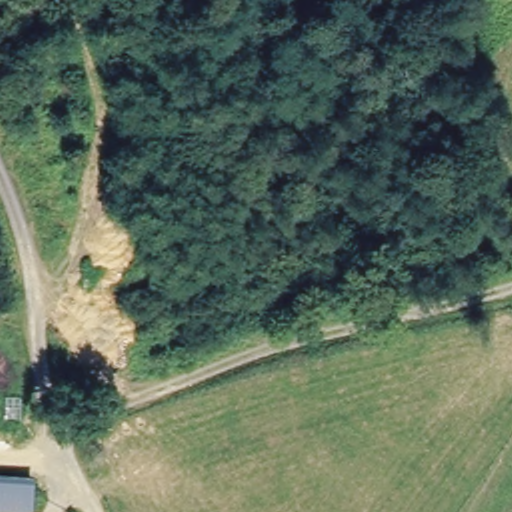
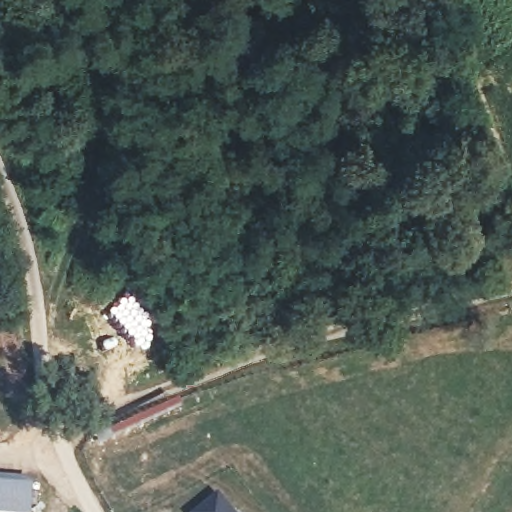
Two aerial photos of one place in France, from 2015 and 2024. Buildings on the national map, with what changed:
unchanged [(2,479),(37,480),(38,512),(0,512),(0,479),(2,479)]
new [(235,512),(194,512),(220,492),(235,512)]

